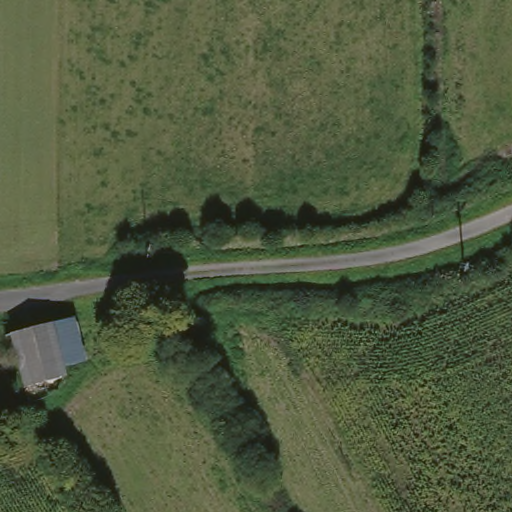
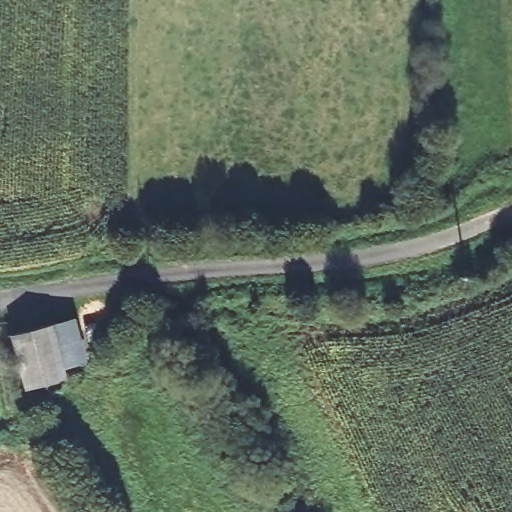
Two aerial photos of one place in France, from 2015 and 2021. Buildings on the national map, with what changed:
unchanged [(49,326),(68,321),(79,365),(61,370),(62,375),(24,385),(9,335),(49,326)]

